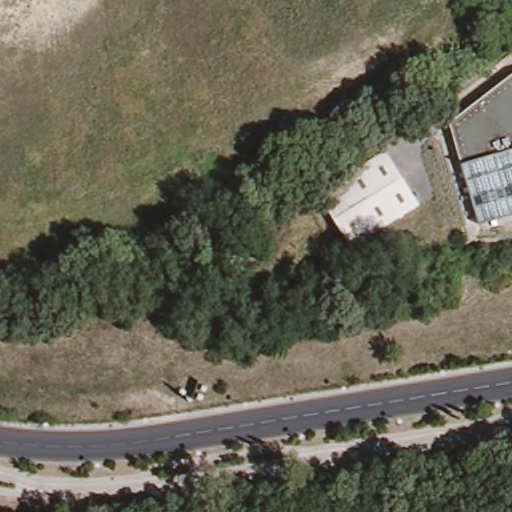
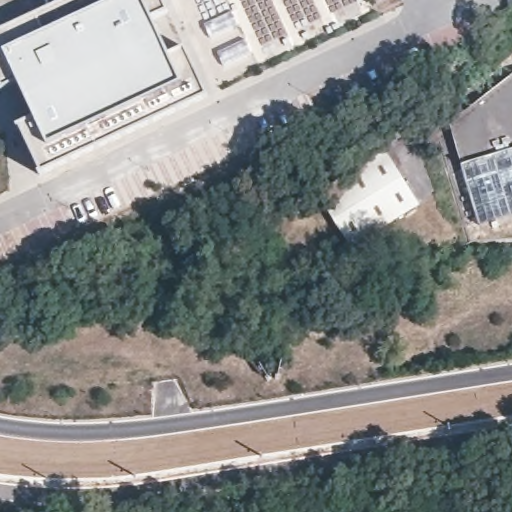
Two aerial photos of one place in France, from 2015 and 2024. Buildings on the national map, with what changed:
new [(20,125),(35,119),(19,81),(2,88),(0,84),(0,0),(47,0),(51,9),(70,0),(163,0),(170,16),(153,23),(167,56),(185,46),(195,39),(217,89),(208,100),(42,175),(20,125)]
unchanged [(450,122),(512,74),(512,149),(461,163),(450,122)]
unchanged [(419,204),(351,247),(316,193),(386,150),(419,204)]
unchanged [(480,224),(463,166),(512,153),(512,215),(480,224)]

